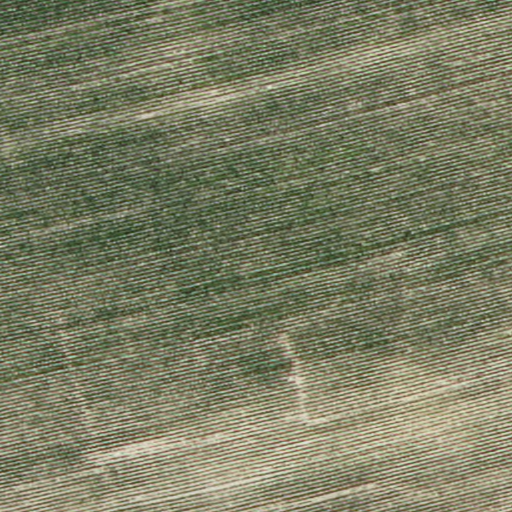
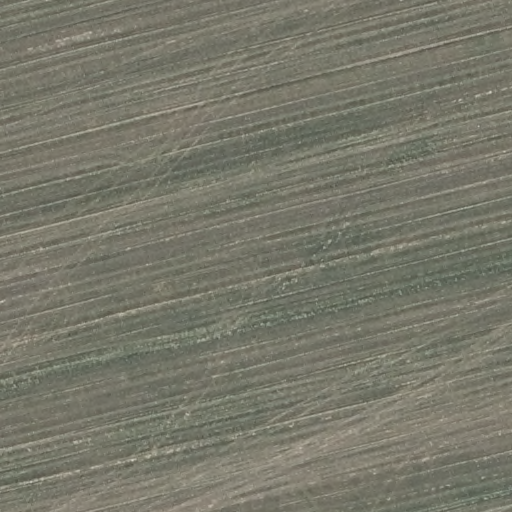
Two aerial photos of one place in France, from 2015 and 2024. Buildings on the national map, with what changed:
[]

